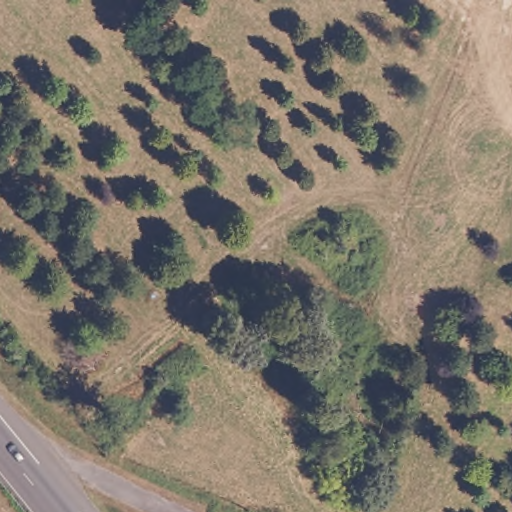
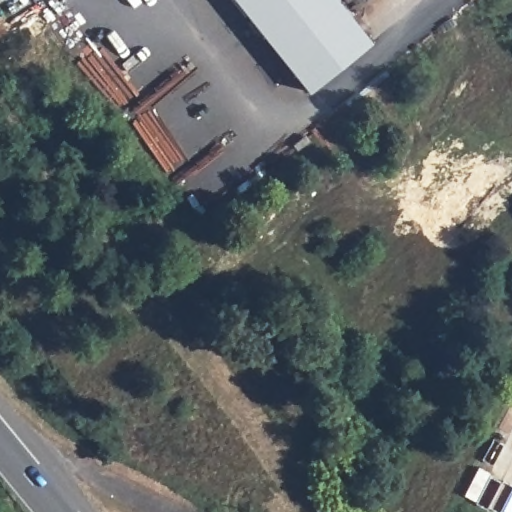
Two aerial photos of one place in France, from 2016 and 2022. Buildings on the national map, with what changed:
new [(309,92),(236,0),(339,0),(372,40),(309,92)]

